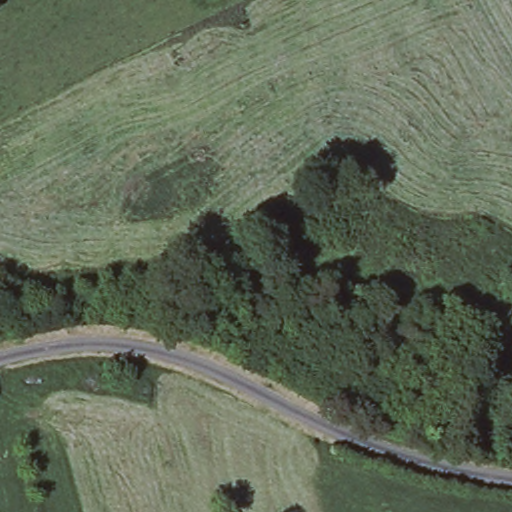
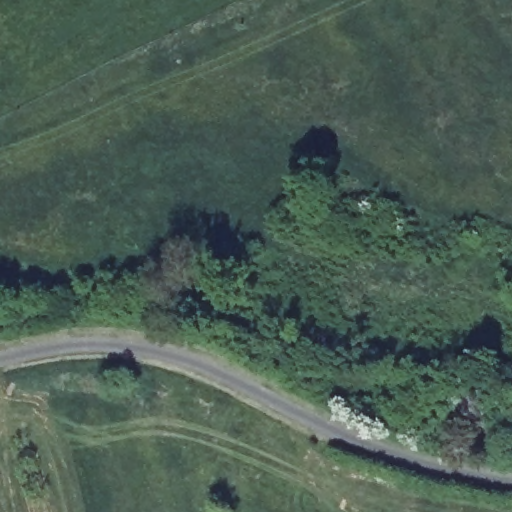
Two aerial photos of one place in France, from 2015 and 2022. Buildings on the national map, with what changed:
unchanged [(481,412),(479,418),(492,422),(484,451),(464,446),(474,410),(481,412)]
unchanged [(512,465),(497,461),(500,449),(512,452),(512,465)]

